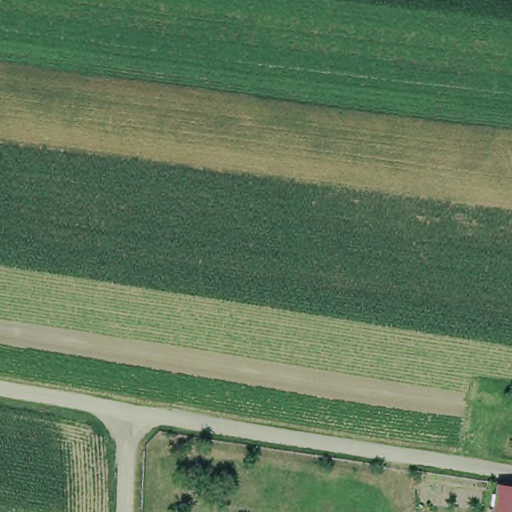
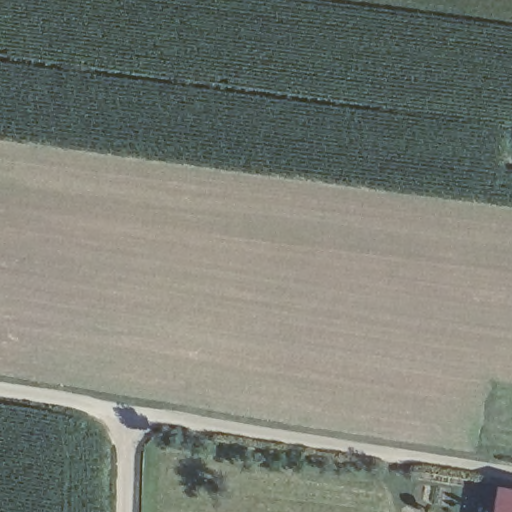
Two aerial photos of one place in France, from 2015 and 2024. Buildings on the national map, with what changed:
unchanged [(512,492),(512,512),(492,512),(496,489),(512,492)]

